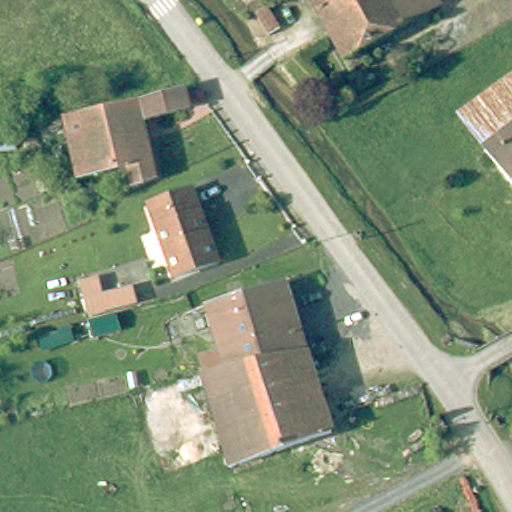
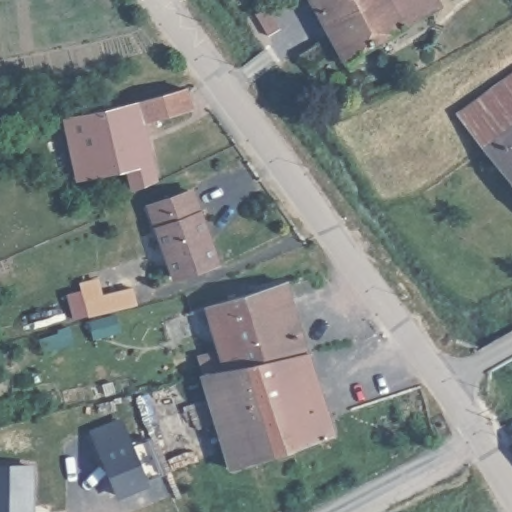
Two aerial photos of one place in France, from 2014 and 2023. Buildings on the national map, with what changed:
unchanged [(351,64),(344,54),(315,0),(419,0),(437,0),(438,1),(424,8),(364,43),(369,52),(351,64)]
unchanged [(269,35),(256,14),(266,5),(280,29),(269,35)]
unchanged [(458,109),(512,69),(512,122),(484,145),(458,109)]
unchanged [(137,116),(150,174),(128,184),(122,162),(73,174),(59,113),(59,111),(93,105),(136,95),(180,83),(186,102),(137,116)]
unchanged [(512,122),(512,178),(484,145),(512,122)]
unchanged [(15,136),(15,149),(0,150),(0,136),(15,136)]
unchanged [(149,205),(191,190),(216,263),(176,278),(149,205)]
unchanged [(281,278),(301,347),(221,364),(203,300),(279,277),(281,278)]
new [(98,280),(103,295),(132,287),(136,303),(88,315),(80,284),(98,280)]
unchanged [(221,364),(301,347),(326,428),(226,463),(197,369),(221,364)]
new [(149,485),(113,498),(89,430),(124,417),(149,485)]
unchanged [(512,434),(512,441),(509,436),(512,434)]
new [(35,463),(34,512),(0,512),(0,462),(35,463)]

